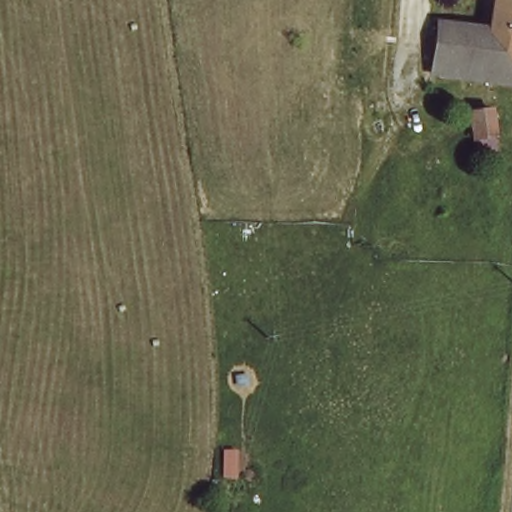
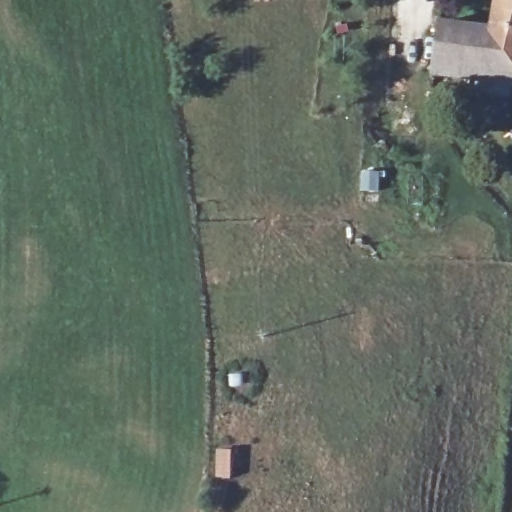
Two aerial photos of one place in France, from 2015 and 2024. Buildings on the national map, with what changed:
unchanged [(442,24),(493,31),(499,0),(512,0),(512,77),(437,68),(442,24)]
unchanged [(500,142),(478,145),(477,116),(496,113),(500,142)]

